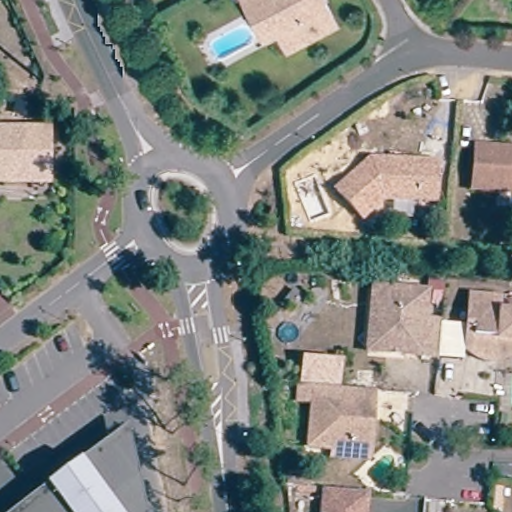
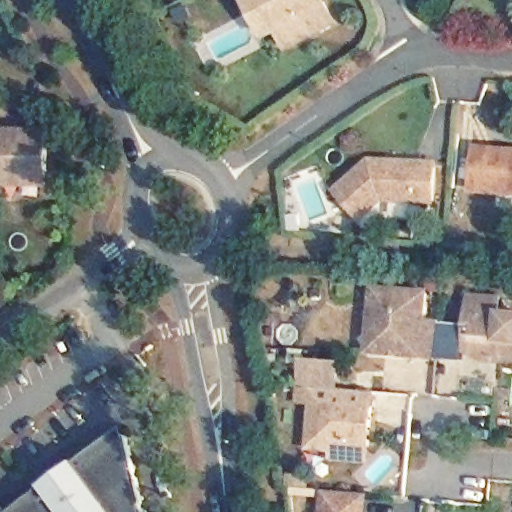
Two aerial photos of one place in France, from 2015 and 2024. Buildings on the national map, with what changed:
unchanged [(244,0),(319,0),(328,17),(283,40),(275,23),(261,30),(244,0)]
unchanged [(15,128),(19,114),(36,119),(33,132),(15,128)]
unchanged [(49,177),(49,186),(27,186),(5,186),(0,186),(0,136),(49,136),(49,177)]
unchanged [(474,182),(476,142),(512,145),(512,185),(474,182)]
unchanged [(432,199),(383,196),(361,215),(338,188),(380,151),(435,155),(432,199)]
unchanged [(288,279),(301,289),(291,302),(278,292),(288,279)]
unchanged [(478,356),(470,347),(463,346),(463,354),(436,352),(380,348),(364,347),(368,301),(369,283),(423,288),(421,319),(438,320),(465,321),(467,304),(468,287),(496,289),(495,307),(512,308),(512,351),(478,356)]
unchanged [(338,453),(315,451),(319,408),(306,406),(303,387),(307,387),(310,363),(342,366),(340,390),(380,393),(375,448),(356,446),(356,455),(338,453)]
unchanged [(81,463),(126,428),(147,512),(15,512),(49,487),(81,463)]
unchanged [(360,512),(314,512),(316,481),(362,485),(360,512)]

